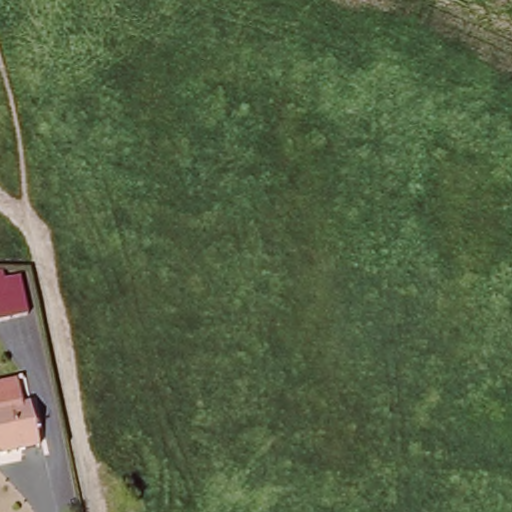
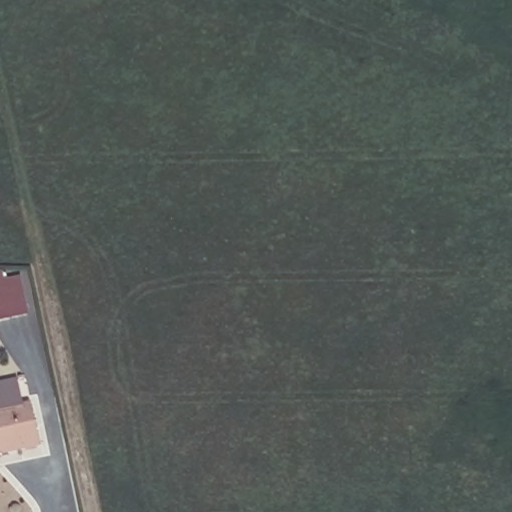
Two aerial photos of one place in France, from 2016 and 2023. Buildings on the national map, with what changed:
unchanged [(27,312),(0,318),(0,271),(19,270),(27,312)]
unchanged [(22,405),(0,409),(0,383),(17,380),(22,405)]
unchanged [(37,445),(0,452),(0,409),(27,404),(37,445)]

